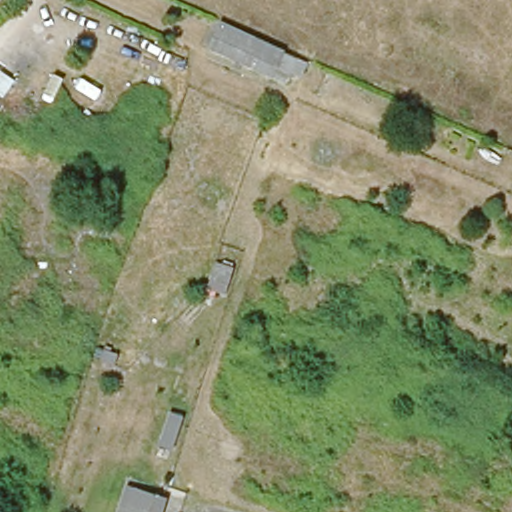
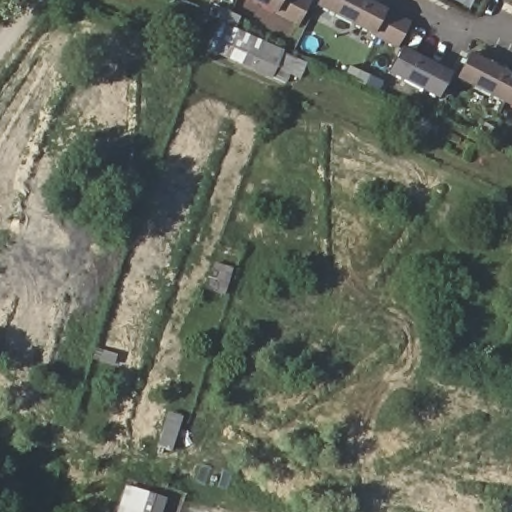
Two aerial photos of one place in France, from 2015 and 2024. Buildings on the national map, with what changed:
new [(275,13),(249,0),(311,0),(300,24),(275,13)]
new [(316,5),(318,0),(370,0),(387,9),(372,35),(316,5)]
unchanged [(225,25),(298,58),(287,84),(215,51),(225,25)]
new [(438,99),(389,74),(402,47),(452,72),(438,99)]
new [(471,51),(512,73),(512,107),(457,79),(471,51)]
unchanged [(225,288),(199,281),(207,255),(232,262),(225,288)]
unchanged [(166,414),(177,418),(170,442),(158,438),(166,414)]
unchanged [(35,512),(4,512),(0,511),(0,485),(14,490),(10,500),(36,508),(35,512)]
unchanged [(132,488),(155,496),(167,500),(163,512),(123,512),(132,488)]

